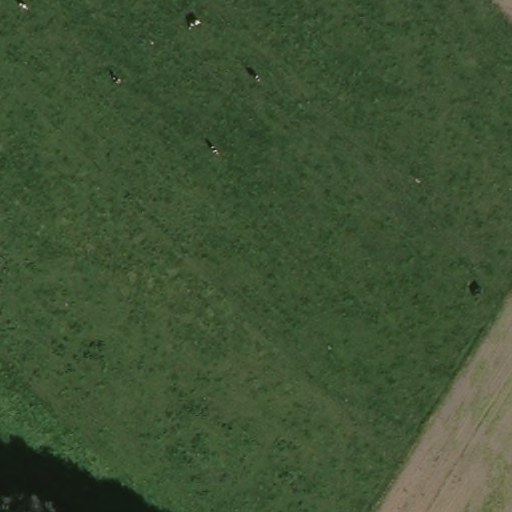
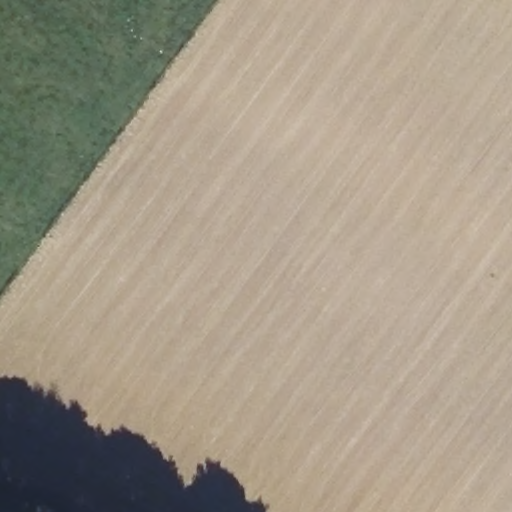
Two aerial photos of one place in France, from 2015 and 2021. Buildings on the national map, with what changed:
[]

